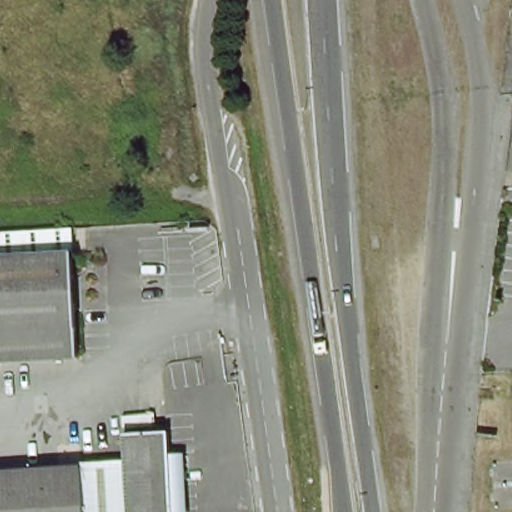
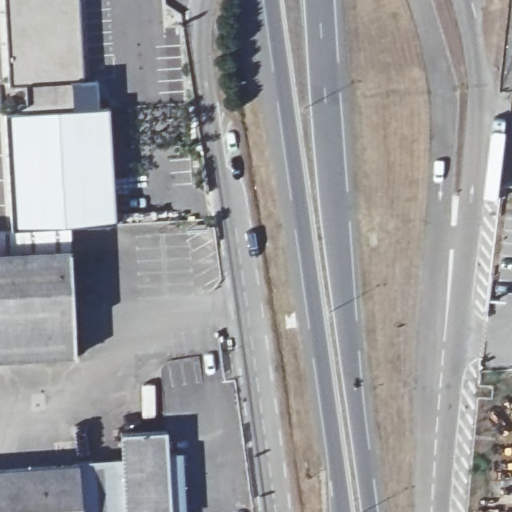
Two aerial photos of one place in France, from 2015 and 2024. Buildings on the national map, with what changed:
new [(12,231),(5,116),(28,114),(28,86),(8,87),(3,0),(77,0),(82,82),(97,81),(100,109),(108,109),(115,222),(12,231)]
unchanged [(75,250),(81,355),(0,360),(0,254),(75,250)]
unchanged [(168,490),(169,512),(128,512),(127,456),(125,429),(165,427),(168,490)]
unchanged [(187,512),(172,512),(170,448),(182,448),(187,512)]
unchanged [(80,458),(127,456),(128,512),(0,512),(0,465),(80,461),(80,458)]
unchanged [(170,512),(169,512),(168,490),(170,512)]

